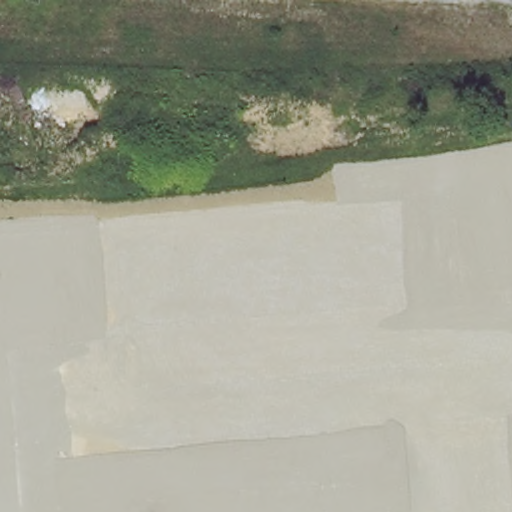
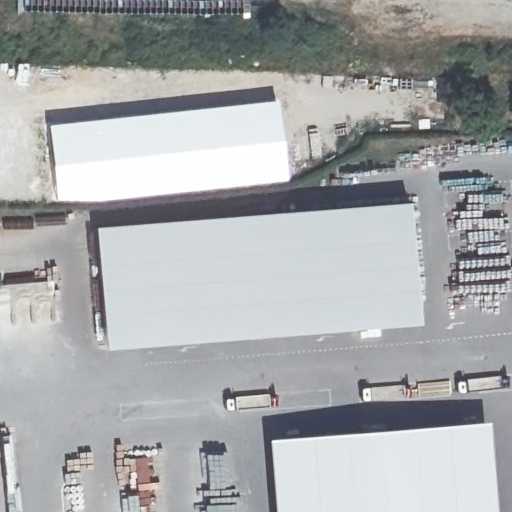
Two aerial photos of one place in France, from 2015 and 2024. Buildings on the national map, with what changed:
new [(277,99),(287,180),(123,198),(53,202),(46,123),(277,99)]
new [(97,229),(408,204),(415,324),(107,348),(97,229)]
unchanged [(487,422),(494,512),(274,512),(268,440),(487,422)]

